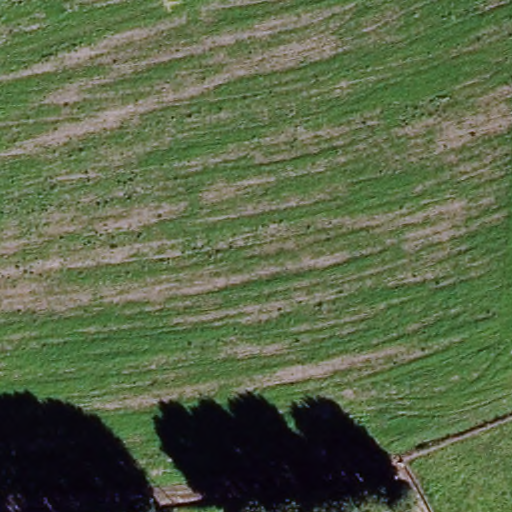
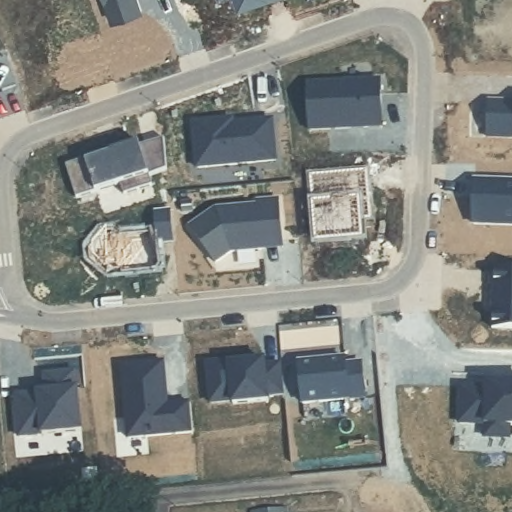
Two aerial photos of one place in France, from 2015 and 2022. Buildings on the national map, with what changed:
new [(142,13),(113,23),(105,0),(138,0),(142,13)]
new [(241,6),(239,0),(260,0),(241,6)]
new [(381,82),(382,127),(309,130),(307,85),(381,82)]
new [(512,103),(512,139),(487,138),(488,102),(512,103)]
new [(232,120),(233,125),(241,125),(272,121),(276,161),(196,169),(192,124),(232,120)]
new [(86,160),(87,162),(111,155),(110,152),(139,143),(140,146),(164,139),(167,171),(149,176),(153,187),(124,196),(120,185),(76,200),(65,166),(86,160)]
new [(366,173),(370,220),(361,220),(362,240),(318,244),(312,178),(366,173)]
new [(512,183),(512,226),(473,225),(475,181),(512,183)]
new [(215,210),(256,206),(256,201),(278,200),(283,248),(231,253),(215,264),(190,227),(215,210)]
new [(103,232),(114,231),(119,236),(157,233),(160,266),(156,270),(122,274),(121,270),(111,272),(107,275),(90,261),(89,250),(103,232)]
new [(512,272),(512,330),(492,329),(493,287),(491,287),(491,271),(512,272)]
new [(345,360),(345,365),(361,363),(365,398),(303,405),(299,364),(345,360)]
new [(230,362),(231,365),(248,363),(264,362),(265,367),(282,365),(285,395),(268,397),(268,402),(233,405),(233,402),(210,405),(207,364),(230,362)]
new [(164,363),(167,406),(190,404),(193,434),(128,440),(121,367),(164,363)]
new [(45,392),(43,375),(75,372),(82,431),(19,438),(15,395),(45,392)]
new [(487,387),(486,390),(505,390),(505,385),(512,385),(512,427),(510,426),(509,440),(485,438),(485,425),(459,425),(461,386),(487,387)]
unchanged [(395,507),(395,512),(357,512),(357,508),(395,507)]

